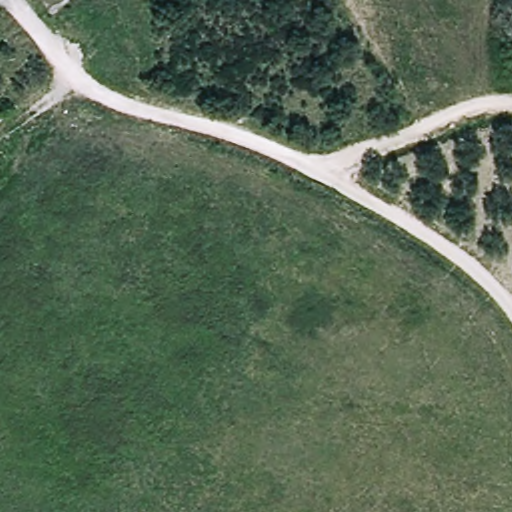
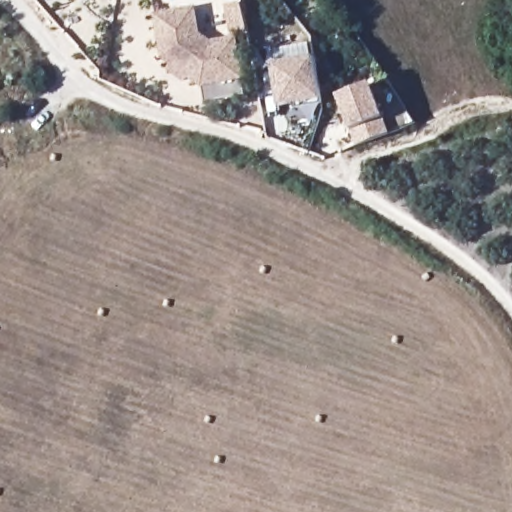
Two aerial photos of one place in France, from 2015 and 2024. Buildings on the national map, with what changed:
new [(245,81),(242,81),(244,96),(204,102),(201,88),(188,78),(184,83),(167,71),(170,66),(161,60),(154,14),(197,8),(202,34),(213,41),(239,38),(245,81)]
new [(316,58),(323,101),(324,106),(295,111),(293,106),(278,109),(271,66),(316,58)]
new [(352,131),(339,97),(371,86),(384,118),(352,131)]

